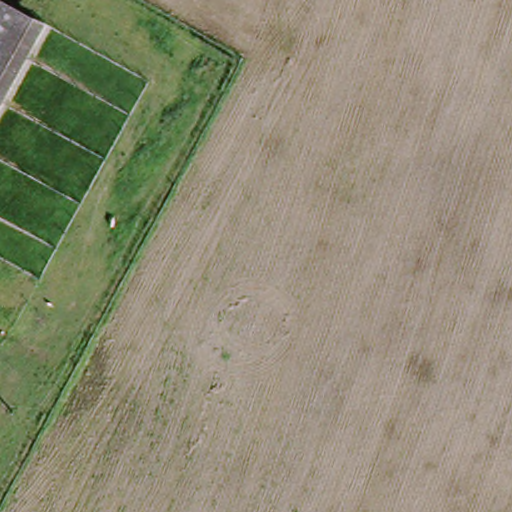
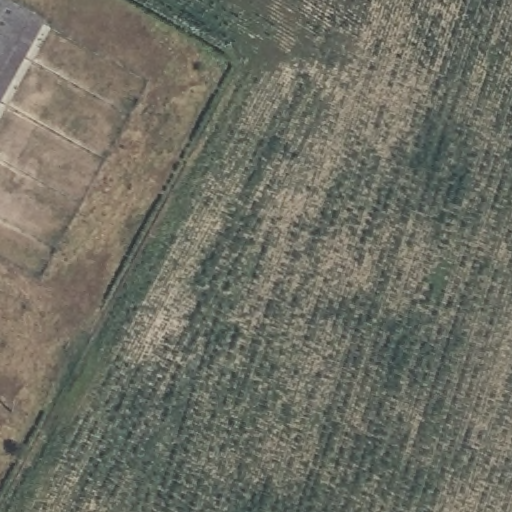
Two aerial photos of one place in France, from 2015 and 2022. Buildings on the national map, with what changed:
unchanged [(9,0),(50,28),(0,121),(0,0),(9,0)]

